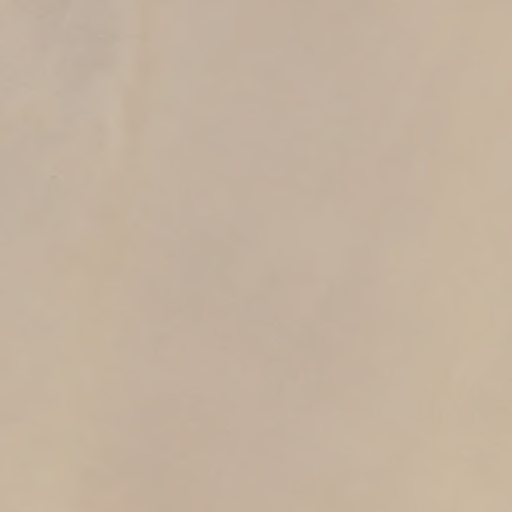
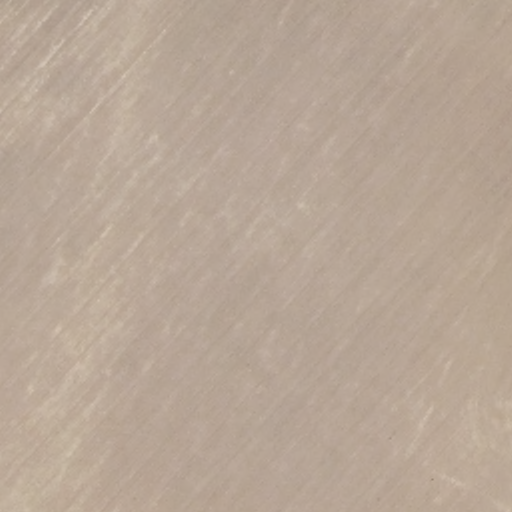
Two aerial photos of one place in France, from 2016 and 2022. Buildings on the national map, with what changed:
[]

